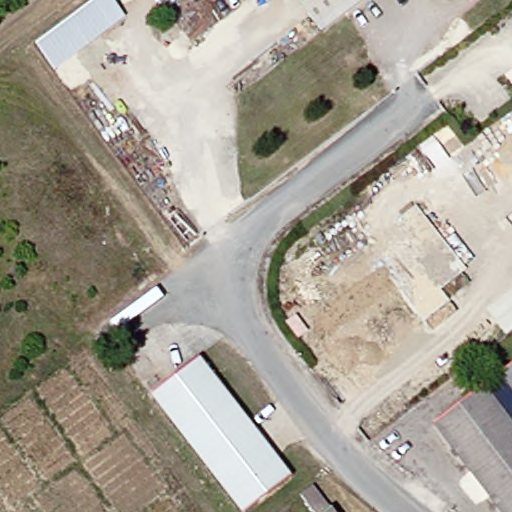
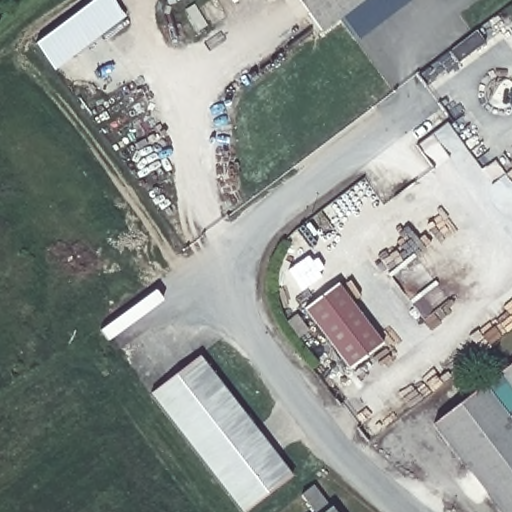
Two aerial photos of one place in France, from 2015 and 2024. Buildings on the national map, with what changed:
unchanged [(35,44),(94,0),(112,0),(125,18),(53,71),(35,44)]
unchanged [(327,30),(305,0),(367,0),(327,30)]
new [(342,283),(385,345),(352,368),(308,306),(342,283)]
unchanged [(295,475),(249,512),(244,512),(152,397),(200,357),(295,475)]
unchanged [(512,373),(512,389),(504,379),(512,373)]
unchanged [(512,422),(487,389),(504,379),(512,389),(512,422)]
unchanged [(512,427),(512,512),(505,512),(438,430),(484,392),(512,427)]
unchanged [(330,512),(310,512),(302,501),(314,491),(330,512)]

